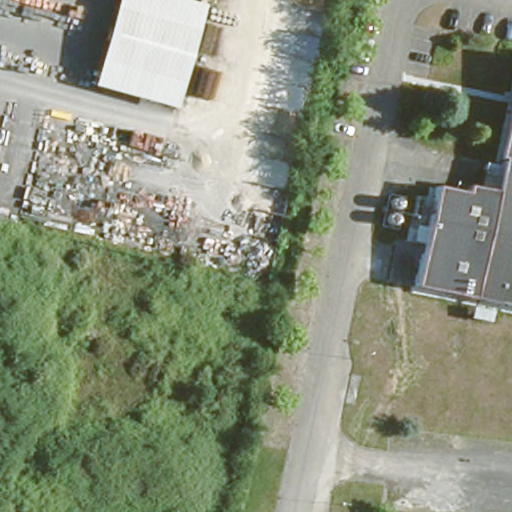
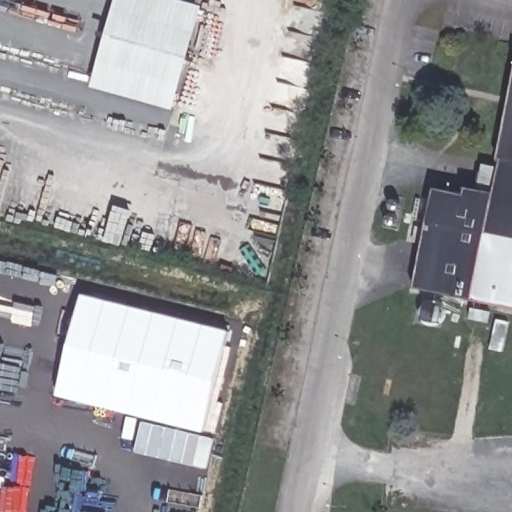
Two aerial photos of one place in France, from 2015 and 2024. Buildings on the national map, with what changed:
unchanged [(176,119),(88,94),(113,0),(164,0),(203,11),(176,119)]
unchanged [(412,282),(434,185),(467,189),(468,180),(493,186),(512,90),(512,303),(412,282)]
new [(205,432),(58,395),(84,293),(230,331),(205,432)]

